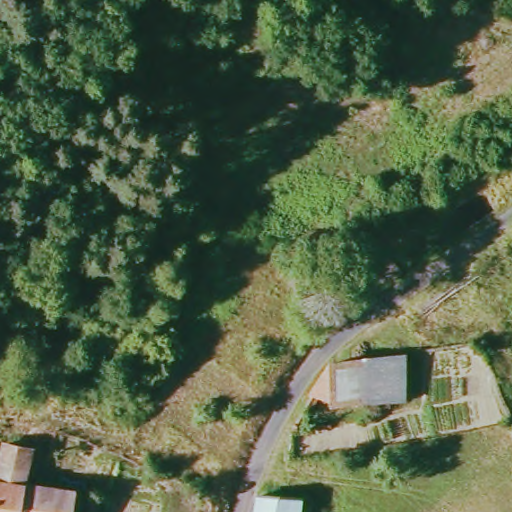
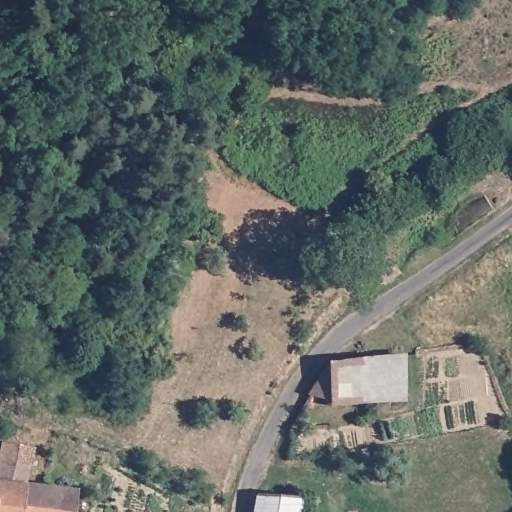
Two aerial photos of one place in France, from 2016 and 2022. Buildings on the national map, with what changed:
unchanged [(414,353),(410,401),(310,415),(342,364),(414,353)]
unchanged [(3,445),(31,447),(27,485),(43,487),(80,493),(78,512),(0,512),(0,468),(3,445)]
unchanged [(261,496),(301,500),(300,512),(257,512),(261,496)]

